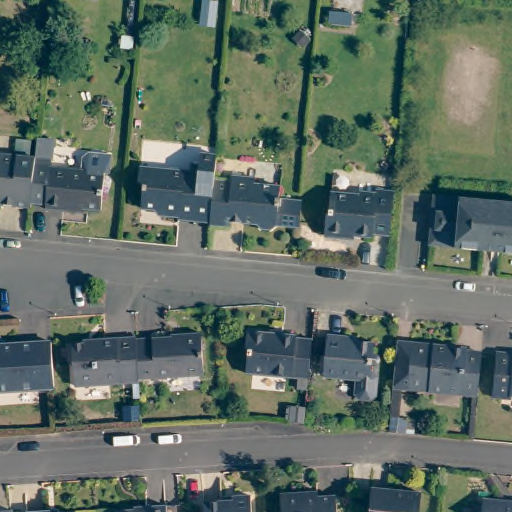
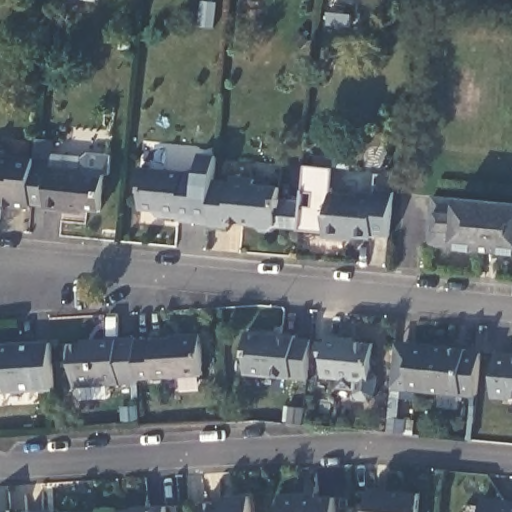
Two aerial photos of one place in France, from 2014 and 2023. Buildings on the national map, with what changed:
unchanged [(34,160),(34,158),(36,140),(52,141),(50,168),(81,171),(82,159),(88,154),(110,156),(109,174),(104,174),(100,211),(75,209),(74,212),(45,210),(45,204),(30,202),(34,160)]
unchanged [(0,197),(0,196),(0,157),(34,160),(30,202),(1,201),(0,197)]
unchanged [(210,217),(210,222),(175,219),(175,217),(160,215),(158,211),(140,209),(142,189),(139,182),(140,171),(199,176),(200,157),(215,157),(214,176),(214,183),(210,217)]
unchanged [(276,229),(270,234),(260,232),(255,227),(229,224),(229,227),(210,225),(210,222),(210,217),(214,183),(230,185),(230,180),(254,182),(254,187),(280,189),(278,201),(302,202),(299,232),(276,229)]
unchanged [(373,236),(372,239),(346,237),(346,240),(324,237),(325,215),(328,215),(330,195),(352,199),(358,192),(375,194),(375,190),(394,192),(394,194),(390,238),(373,236)]
unchanged [(429,245),(433,197),(512,203),(512,254),(498,252),(484,251),(429,245)]
unchanged [(307,382),(245,375),(246,351),(245,350),(246,332),(294,337),(294,340),(310,342),(307,382)]
unchanged [(135,342),(180,340),(179,336),(200,335),(202,376),(138,379),(135,342)]
unchanged [(135,342),(138,379),(138,383),(75,387),(73,368),(66,362),(65,346),(97,343),(96,341),(135,338),(135,342)]
unchanged [(356,395),(357,380),(324,377),(327,338),(345,340),(345,342),(375,346),(372,373),(375,373),(380,379),(377,397),(372,402),(360,400),(356,395)]
unchanged [(402,389),(406,351),(407,342),(420,344),(475,349),(475,352),(491,353),(486,397),(415,390),(402,389)]
unchanged [(53,391),(0,393),(0,349),(50,346),(53,391)]
unchanged [(510,396),(509,400),(490,397),(495,353),(512,356),(512,396),(510,396)]
unchanged [(339,512),(283,512),(281,489),(308,487),(314,486),(314,492),(315,494),(338,492),(339,512)]
unchanged [(373,512),(375,492),(422,497),(420,512),(373,512)]
unchanged [(232,500),(232,497),(250,495),(251,512),(205,512),(205,502),(232,500)]
unchanged [(506,502),(512,503),(512,512),(484,512),(485,501),(506,502)]
unchanged [(136,512),(146,511),(146,507),(165,507),(166,512),(136,512)]
unchanged [(11,512),(0,512),(0,508),(11,508),(11,512)]
unchanged [(47,512),(33,512),(47,511),(47,512)]

